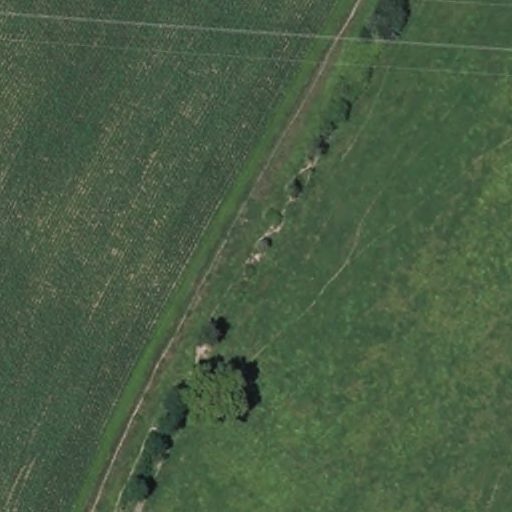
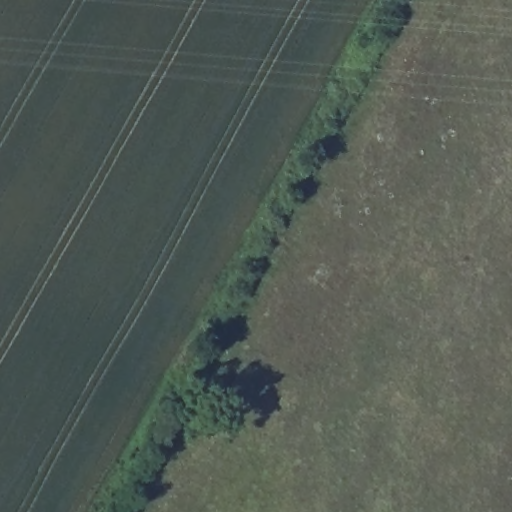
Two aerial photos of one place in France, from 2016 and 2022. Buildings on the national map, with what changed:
[]

